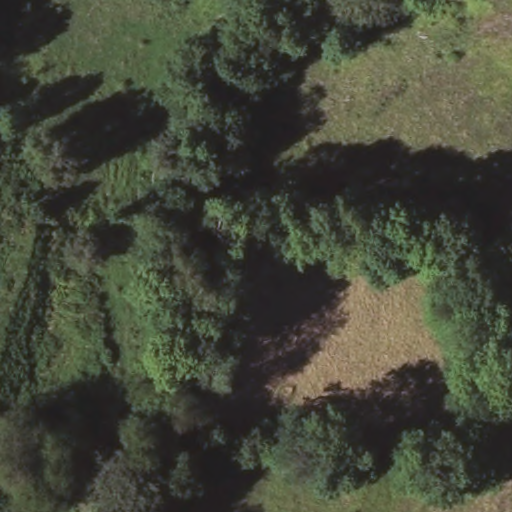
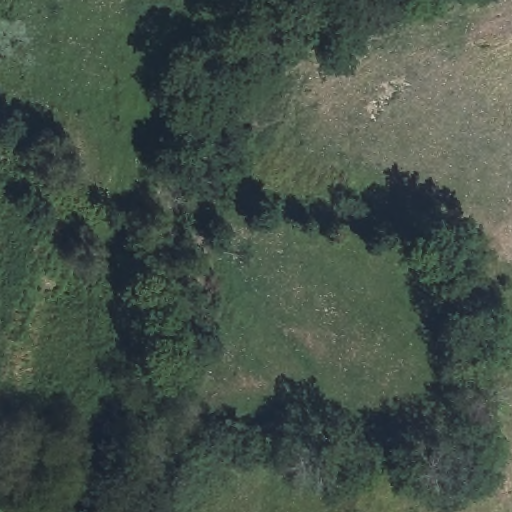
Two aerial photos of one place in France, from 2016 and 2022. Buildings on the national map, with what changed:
[]

